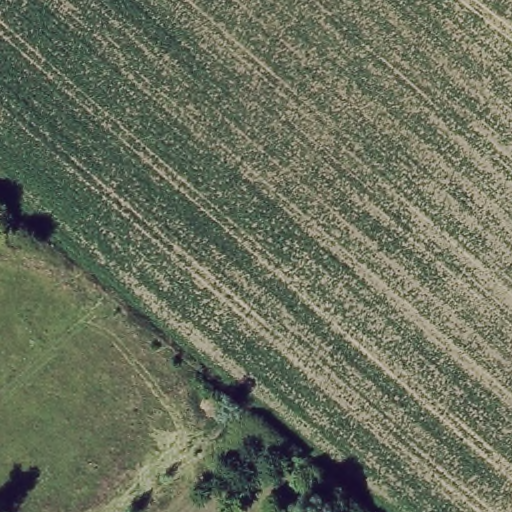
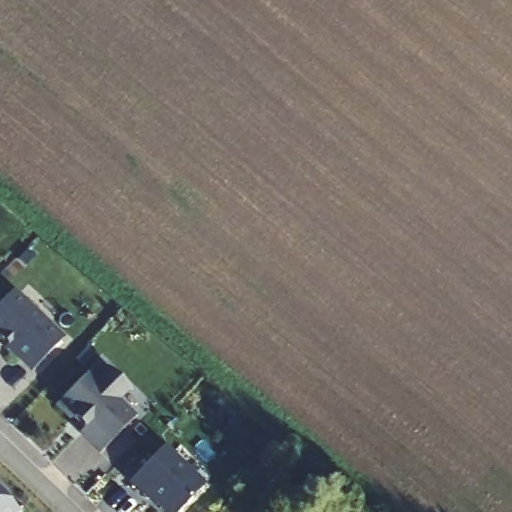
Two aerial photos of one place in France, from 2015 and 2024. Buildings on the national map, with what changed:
new [(63,337),(31,373),(0,344),(0,302),(13,288),(63,337)]
new [(130,390),(118,401),(135,417),(99,453),(80,436),(82,433),(53,407),(89,372),(97,379),(108,367),(130,390)]
new [(164,445),(206,484),(181,512),(162,512),(129,484),(164,445)]
new [(18,512),(0,512),(0,494),(18,512)]

